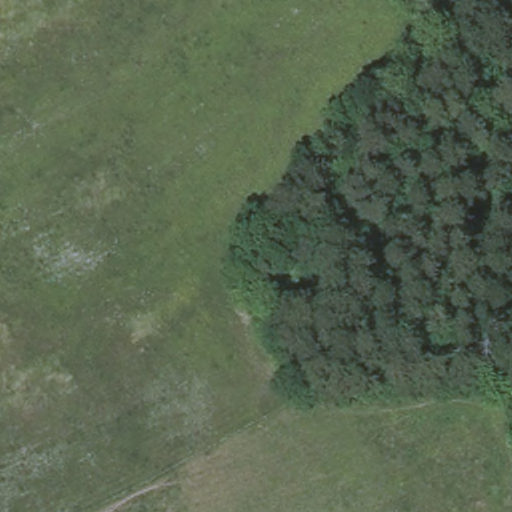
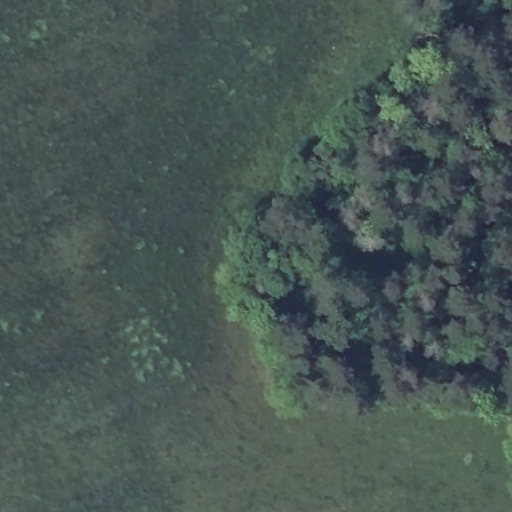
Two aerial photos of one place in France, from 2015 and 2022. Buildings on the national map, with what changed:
[]

